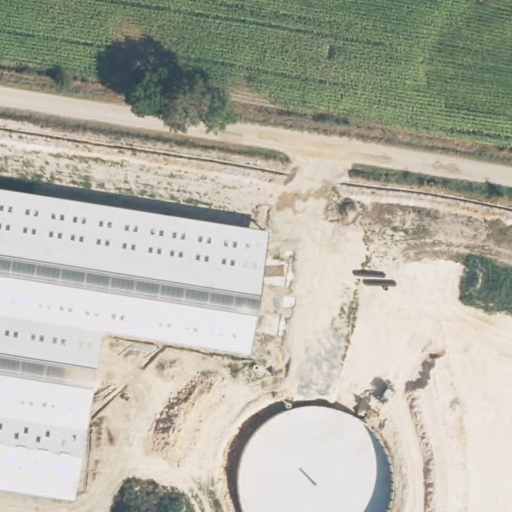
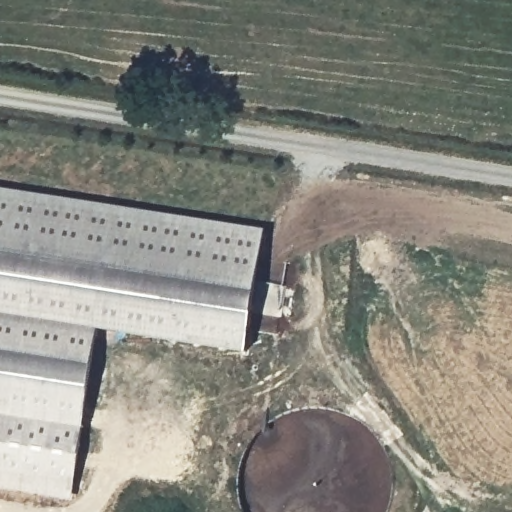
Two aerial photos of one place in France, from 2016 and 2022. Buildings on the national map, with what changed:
unchanged [(248,354),(99,330),(73,500),(0,489),(0,189),(267,230),(248,354)]

